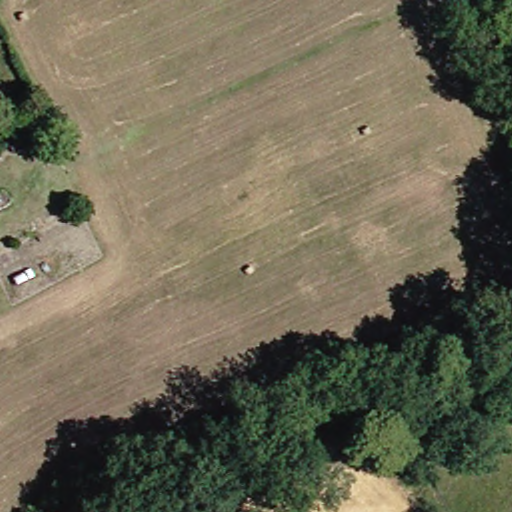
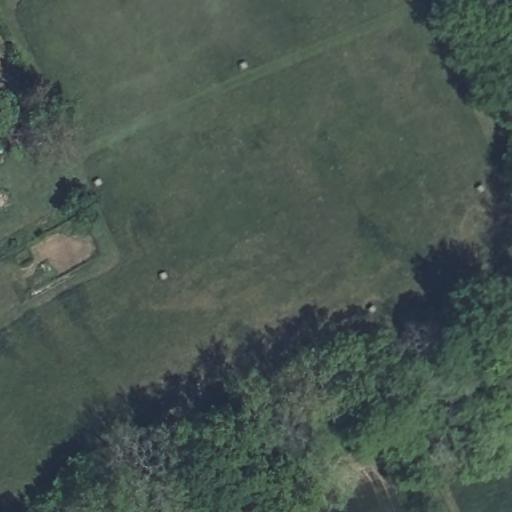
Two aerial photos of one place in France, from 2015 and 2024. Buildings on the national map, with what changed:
unchanged [(5,139),(31,126),(38,139),(12,153),(5,139)]

